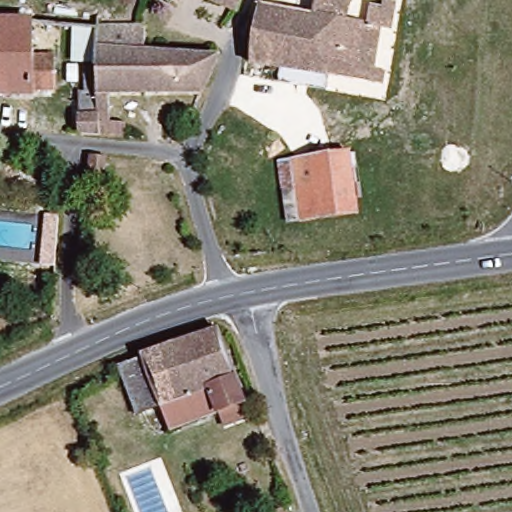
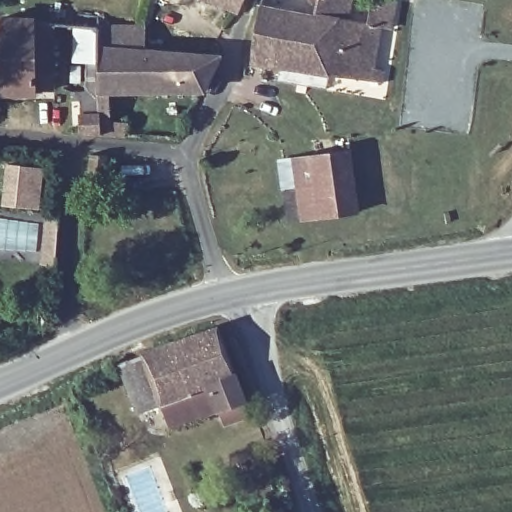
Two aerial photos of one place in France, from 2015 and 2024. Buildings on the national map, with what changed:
unchanged [(220,0),(239,0),(236,7),(220,0)]
unchanged [(389,82),(254,59),(260,5),(312,15),(316,0),(353,0),(346,21),(365,24),(368,3),(382,5),(383,0),(392,0),(397,1),(394,26),(384,25),(381,68),(391,69),(389,82)]
unchanged [(29,51),(49,52),(49,83),(30,82),(29,90),(0,89),(0,17),(29,19),(29,51)]
unchanged [(83,102),(83,93),(90,93),(89,62),(100,62),(100,30),(145,31),(145,52),(220,52),(208,87),(112,94),(114,125),(129,125),(129,136),(99,134),(80,132),(83,102)]
unchanged [(355,209),(314,212),(309,152),(349,148),(355,209)]
unchanged [(293,214),(286,157),(309,152),(314,212),(293,214)]
unchanged [(104,155),(103,184),(95,182),(94,191),(86,191),(89,154),(104,155)]
new [(44,170),(41,209),(1,206),(5,166),(44,170)]
new [(44,217),(55,217),(54,232),(52,266),(41,265),(42,231),(44,217)]
unchanged [(220,406),(169,425),(160,401),(139,409),(119,357),(217,321),(247,397),(243,399),(248,413),(225,421),(220,406)]
unchanged [(279,507),(281,512),(267,512),(279,507)]

